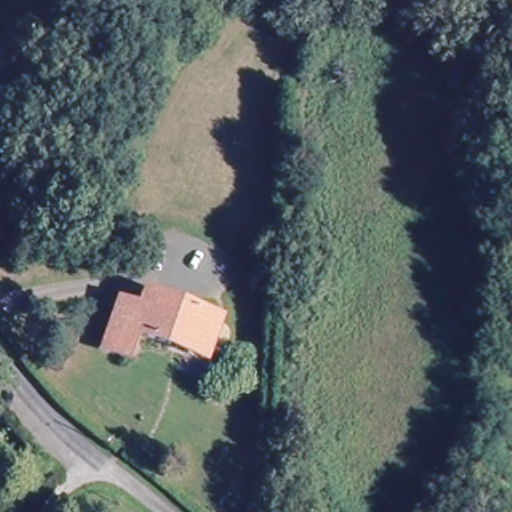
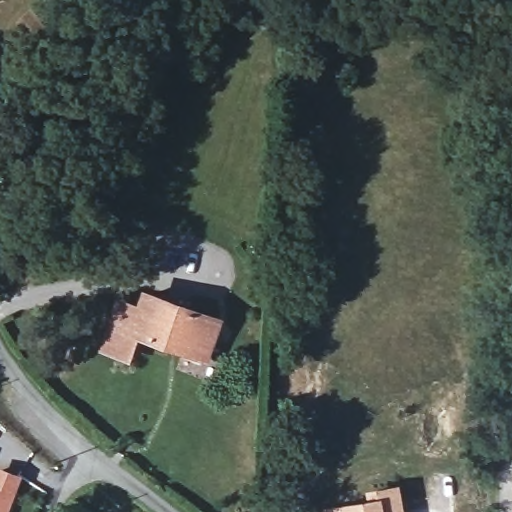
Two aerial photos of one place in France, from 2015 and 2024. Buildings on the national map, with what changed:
unchanged [(171,352),(135,339),(127,362),(102,354),(119,308),(139,315),(144,299),(219,325),(210,352),(206,363),(171,352)]
new [(10,512),(0,512),(0,467),(24,476),(10,512)]
new [(321,512),(321,511),(368,502),(366,490),(400,483),(404,512),(321,512)]

